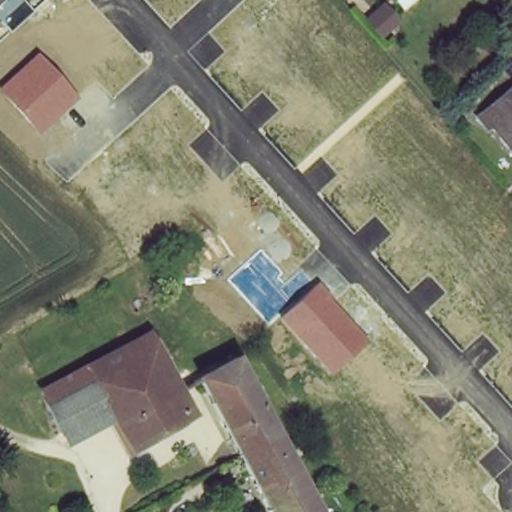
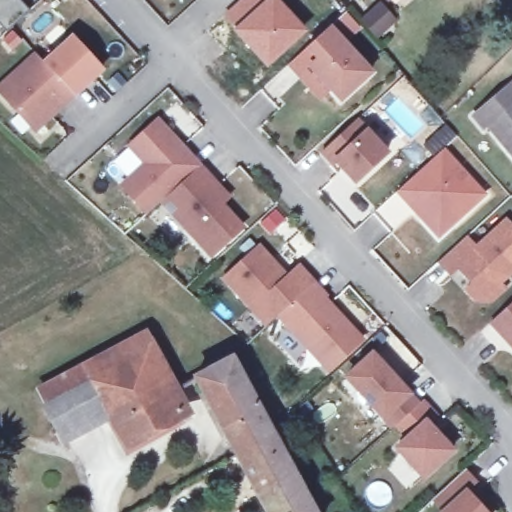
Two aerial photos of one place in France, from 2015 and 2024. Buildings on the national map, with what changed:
unchanged [(20,0),(30,10),(7,30),(0,24),(0,0),(20,0)]
new [(243,31),(229,16),(246,0),(272,0),(275,3),(273,4),(304,36),(266,69),(237,36),(243,31)]
new [(43,62),(72,35),(105,69),(75,97),(43,62)]
new [(363,86),(333,114),(303,81),(292,69),(300,61),(321,41),(363,86)]
unchanged [(34,51),(75,97),(35,132),(0,95),(0,84),(34,51)]
unchanged [(484,125),(475,113),(512,84),(512,146),(490,120),(484,125)]
new [(244,227),(211,259),(159,201),(144,214),(118,186),(142,164),(126,146),(158,118),(232,198),(225,205),(244,227)]
new [(352,131),(383,164),(350,193),(330,173),(327,176),(316,164),(352,131)]
new [(417,230),(392,202),(440,159),(481,204),(445,236),(433,247),(417,230)]
new [(445,286),(433,273),(461,248),(473,261),(505,231),(512,238),(512,278),(494,294),(499,300),(485,313),(469,312),(460,302),(467,295),(452,279),(445,286)]
new [(277,319),(265,328),(220,279),(260,243),(288,274),(298,265),(314,284),(277,319)]
unchanged [(314,284),(365,340),(328,373),(277,319),(314,284)]
new [(512,364),(485,334),(512,309),(512,364)]
unchanged [(40,391),(140,342),(148,356),(97,382),(48,407),(40,391)]
unchanged [(148,356),(159,351),(166,365),(180,392),(173,396),(184,420),(131,448),(115,417),(109,405),(97,382),(148,356)]
new [(382,421),(344,379),(372,351),(413,396),(422,405),(415,413),(392,434),(382,421)]
unchanged [(238,453),(226,431),(198,379),(235,360),(274,433),(238,453)]
unchanged [(109,405),(59,430),(48,407),(97,382),(109,405)]
new [(415,413),(426,428),(418,435),(442,465),(415,490),(392,458),(402,449),(392,434),(415,413)]
unchanged [(274,433),(316,512),(269,512),(238,453),(274,433)]
new [(455,484),(467,497),(458,505),(464,512),(425,512),(455,484)]

